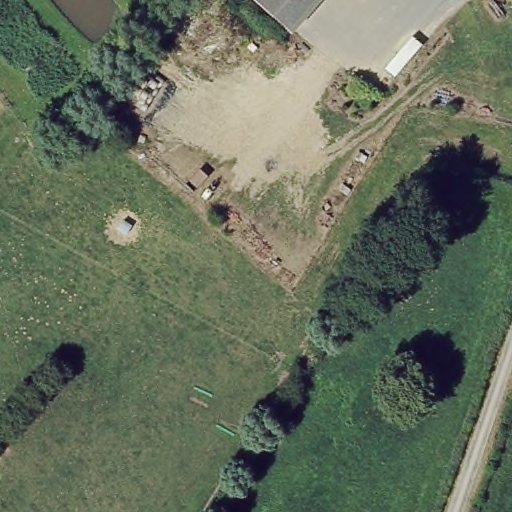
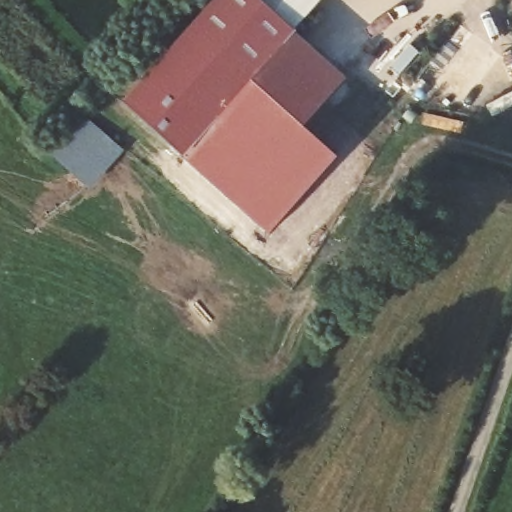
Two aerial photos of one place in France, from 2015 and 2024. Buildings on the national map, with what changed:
new [(114,97),(211,0),(255,0),(289,31),(314,53),(196,177),(114,97)]
unchanged [(255,0),(317,0),(289,31),(255,0)]
new [(198,176),(314,53),(345,80),(301,128),(335,158),(269,234),(196,177),(198,176)]
new [(91,190),(51,155),(86,116),(125,150),(91,190)]

